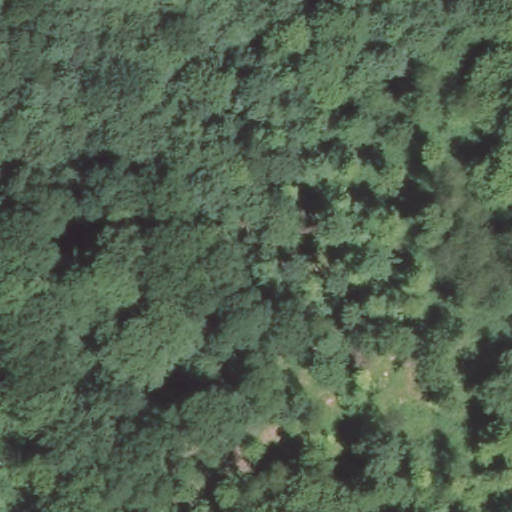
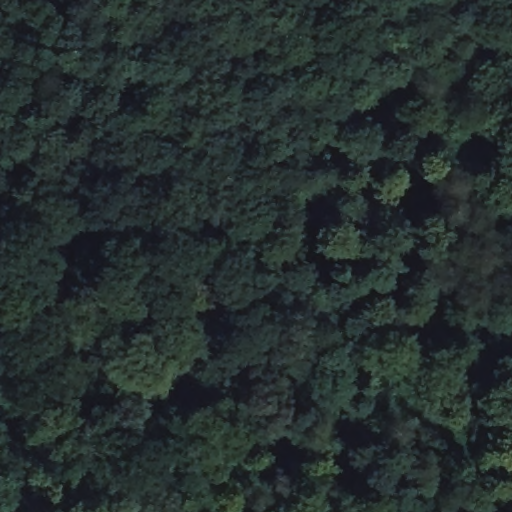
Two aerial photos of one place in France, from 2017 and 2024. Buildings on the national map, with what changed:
unchanged [(80,204),(110,192),(115,207),(87,218),(80,204)]

